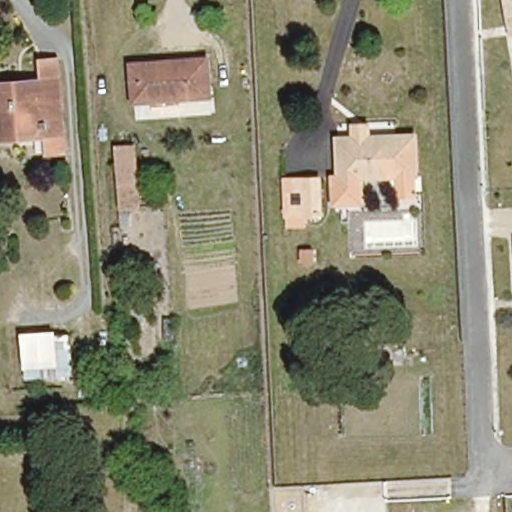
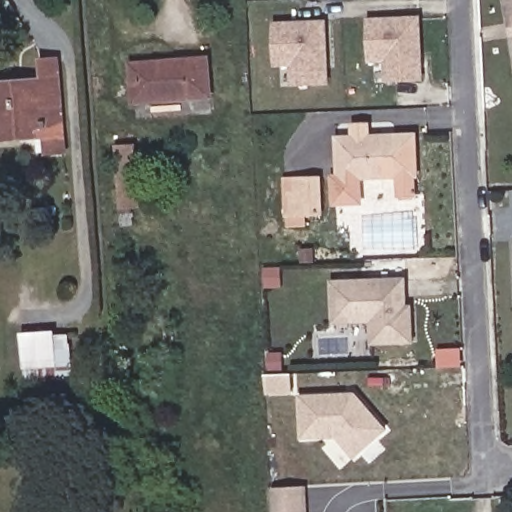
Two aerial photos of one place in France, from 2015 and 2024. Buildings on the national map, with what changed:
unchanged [(506,0),(512,0),(512,36),(510,24),(506,0)]
new [(418,16),(422,79),(387,81),(386,58),(368,59),(366,20),(418,16)]
new [(324,22),(327,85),(292,87),(291,64),(273,65),(271,25),(324,22)]
unchanged [(18,140),(0,141),(0,82),(16,82),(42,81),(42,60),(63,60),(65,128),(65,139),(18,140)]
unchanged [(132,68),(205,60),(210,97),(137,106),(132,68)]
unchanged [(394,198),(393,175),(364,178),(365,206),(320,208),(320,176),(335,174),(336,134),(353,133),(352,122),(374,120),(374,134),(419,131),(421,179),(417,179),(417,198),(394,198)]
unchanged [(136,141),(142,204),(122,206),(115,143),(136,141)]
unchanged [(320,176),(320,208),(319,225),(285,226),(280,174),(320,176)]
new [(404,279),(405,306),(410,306),(411,341),(372,342),(371,317),(333,318),(332,281),(404,279)]
unchanged [(68,331),(71,372),(20,380),(20,336),(68,331)]
new [(353,396),(384,430),(354,456),(335,436),(301,436),(299,396),(353,396)]
new [(305,512),(273,512),(272,489),(304,487),(305,512)]

